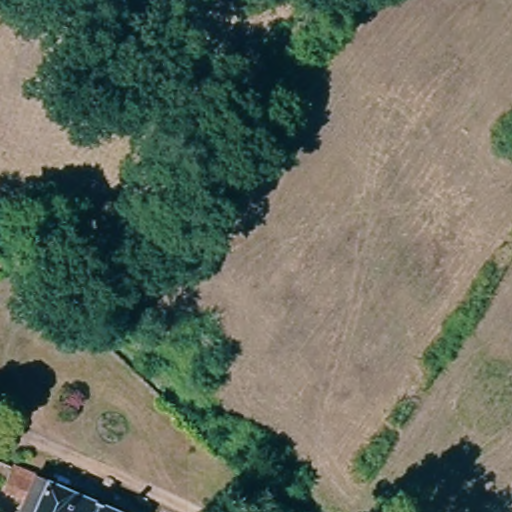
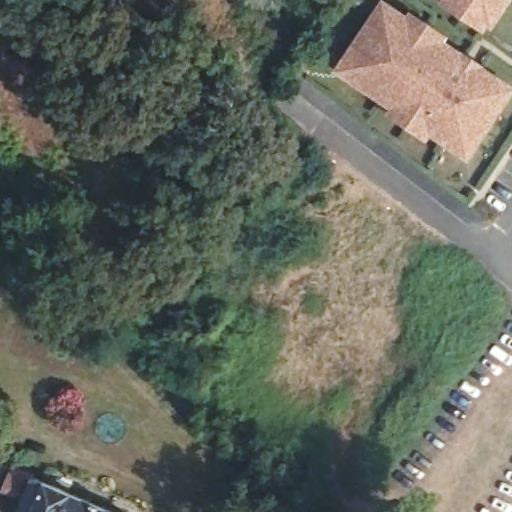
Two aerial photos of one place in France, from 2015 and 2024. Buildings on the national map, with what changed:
new [(490,23),(486,21),(480,30),(443,4),(446,0),(506,0),(490,23)]
new [(422,138),(389,116),(396,106),(358,80),(357,82),(338,70),(345,60),(382,5),(407,21),(412,14),(443,35),(438,43),(463,59),(475,68),(509,90),(474,142),(465,155),(441,139),(442,137),(429,128),(422,138)]
unchanged [(5,488),(12,469),(112,512),(19,512),(25,497),(5,488)]

